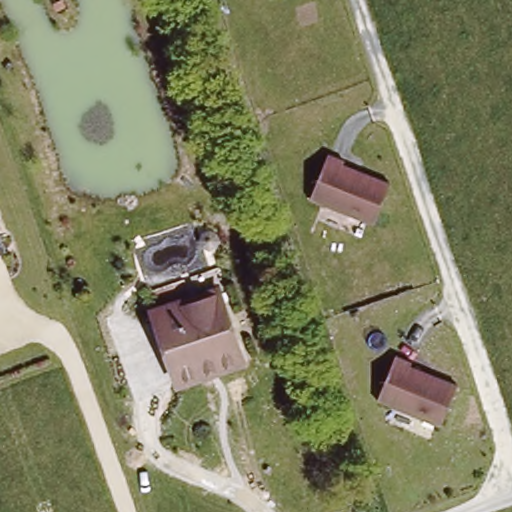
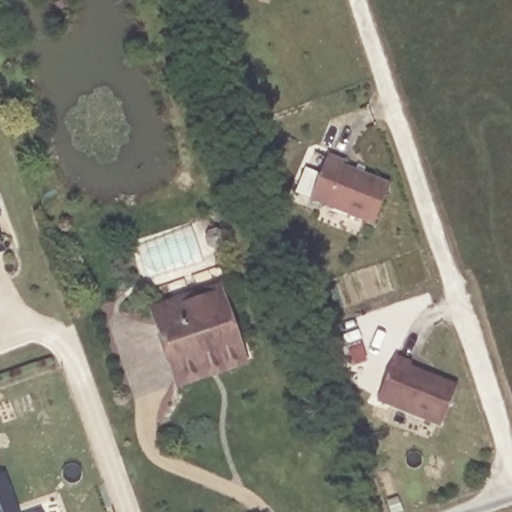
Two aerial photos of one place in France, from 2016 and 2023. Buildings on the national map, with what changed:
unchanged [(345,162),(344,167),(390,184),(372,228),(310,200),(327,153),(345,162)]
unchanged [(6,254),(0,256),(0,236),(6,254)]
unchanged [(244,364),(175,391),(145,314),(218,290),(244,364)]
unchanged [(413,363),(411,367),(457,384),(440,429),(377,402),(393,356),(413,363)]
new [(5,474),(12,489),(13,489),(21,512),(0,512),(0,476),(5,474)]

